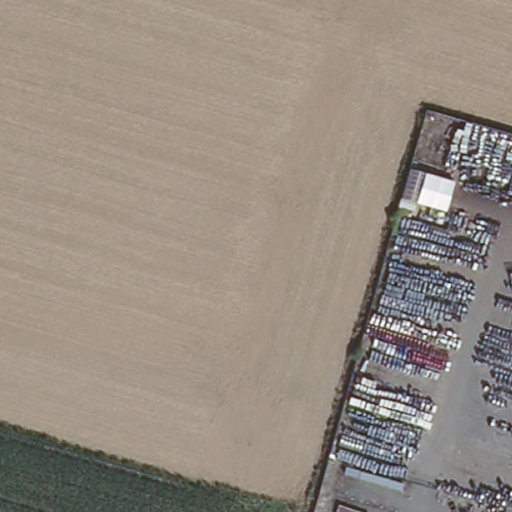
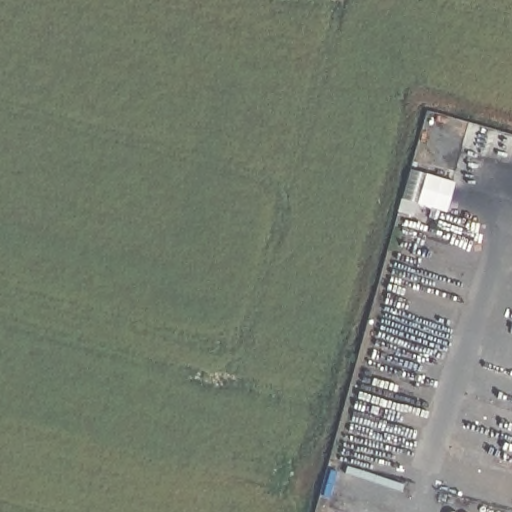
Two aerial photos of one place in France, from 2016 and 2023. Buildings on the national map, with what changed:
[]

